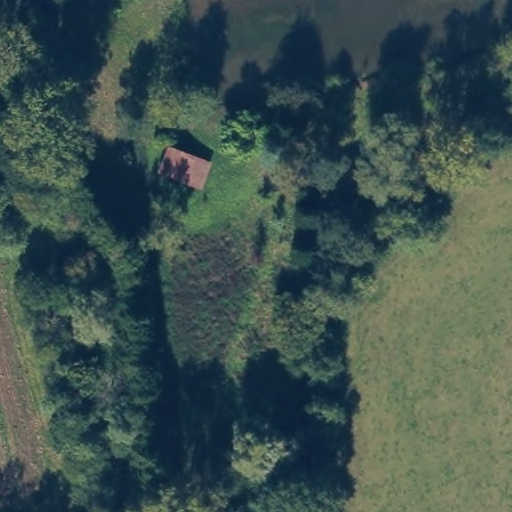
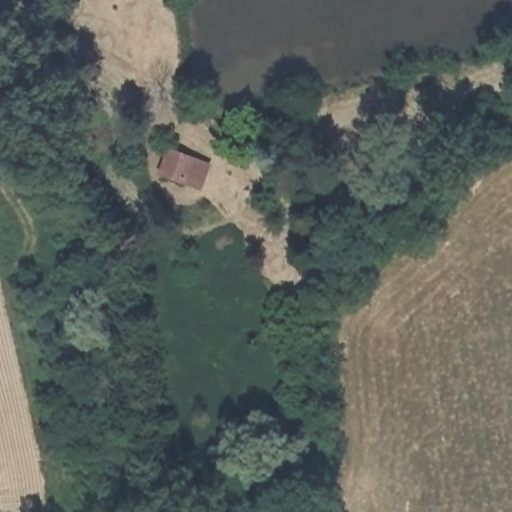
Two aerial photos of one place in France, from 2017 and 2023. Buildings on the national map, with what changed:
unchanged [(185,182),(170,177),(161,175),(170,151),(195,160),(207,165),(203,175),(197,187),(185,182)]

